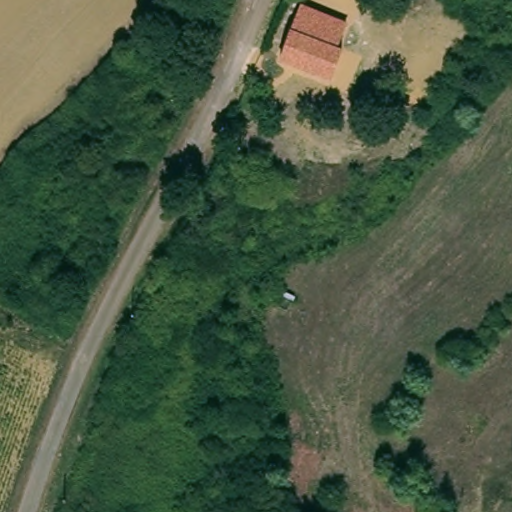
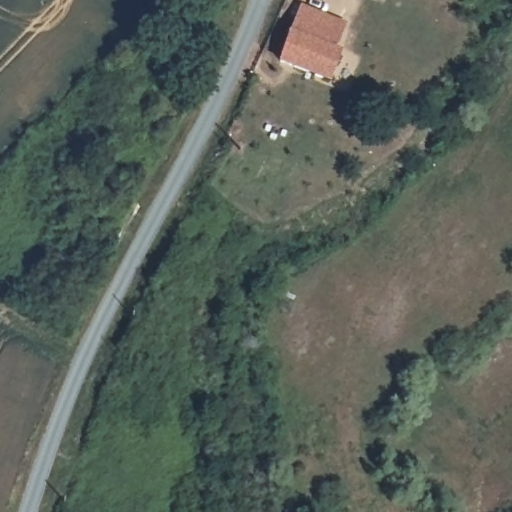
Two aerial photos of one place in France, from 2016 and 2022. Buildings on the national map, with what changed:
unchanged [(347,25),(337,50),(342,52),(330,84),(276,63),(300,6),(347,25)]

